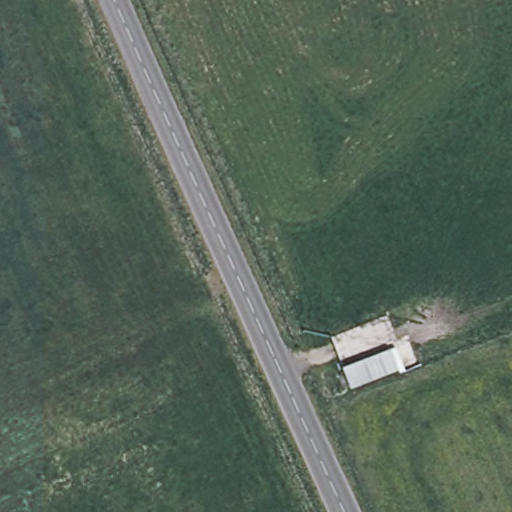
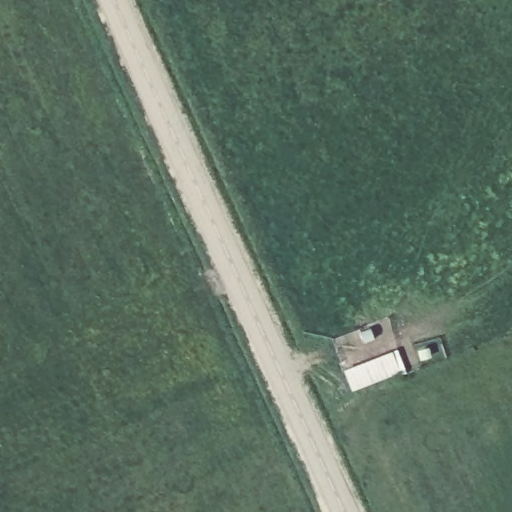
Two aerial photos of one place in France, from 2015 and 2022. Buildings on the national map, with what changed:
unchanged [(393,354),(401,373),(353,391),(346,373),(393,354)]

